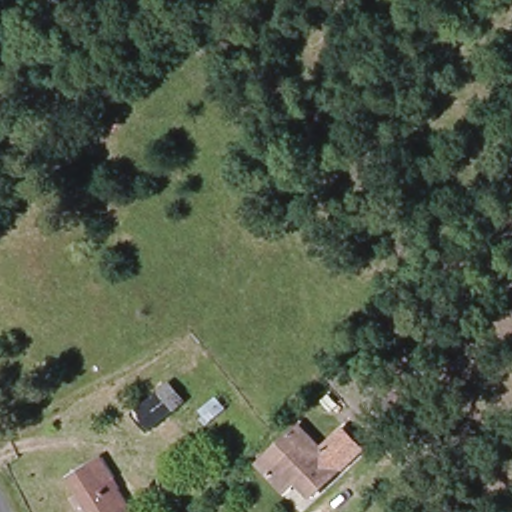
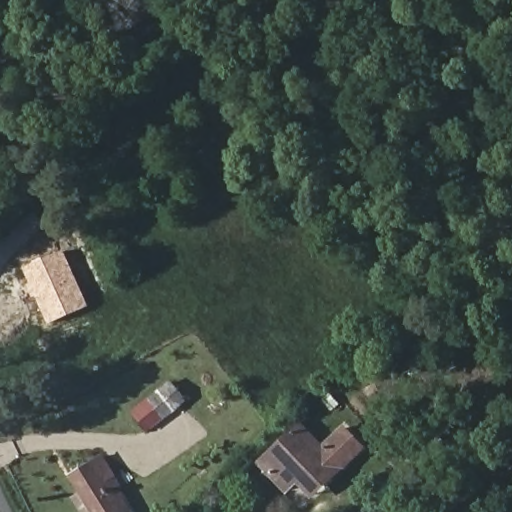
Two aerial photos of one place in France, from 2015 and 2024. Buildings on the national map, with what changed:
new [(48,323),(23,267),(63,250),(88,306),(48,323)]
unchanged [(181,369),(200,391),(148,432),(130,411),(181,369)]
unchanged [(261,450),(291,421),(320,448),(356,411),(376,440),(310,500),(261,450)]
unchanged [(123,500),(128,508),(122,512),(102,512),(77,467),(95,457),(109,481),(118,477),(129,495),(123,500)]

